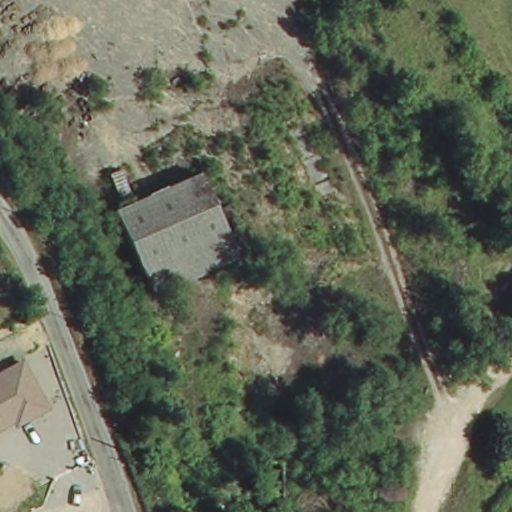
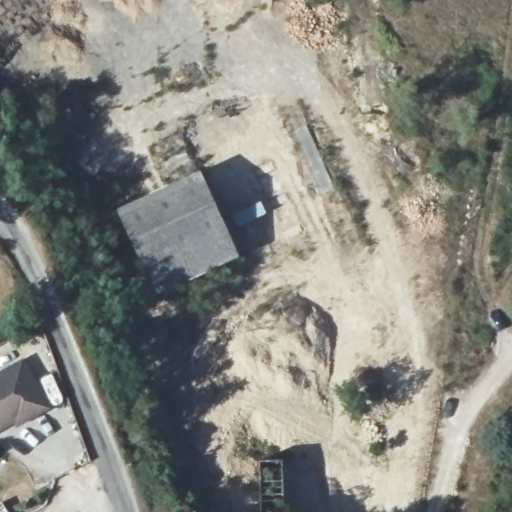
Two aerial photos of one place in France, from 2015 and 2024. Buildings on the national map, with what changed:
unchanged [(199,169),(235,251),(153,289),(116,206),(199,169)]
unchanged [(22,358),(51,410),(16,427),(14,424),(0,431),(0,370),(22,358)]

